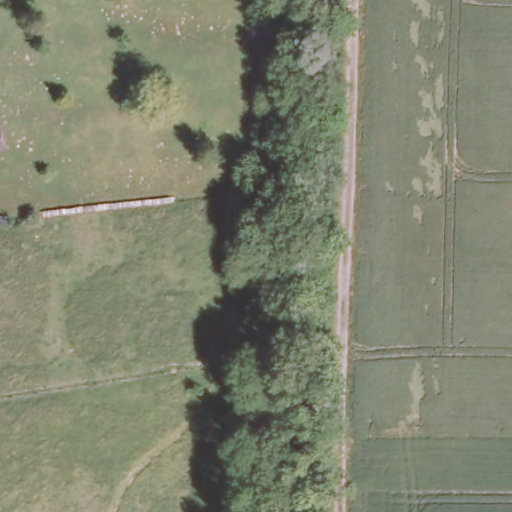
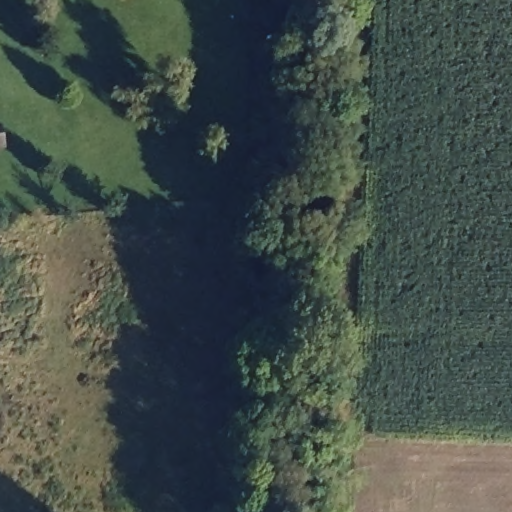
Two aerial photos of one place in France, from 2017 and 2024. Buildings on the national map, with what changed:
unchanged [(0,151),(0,138),(2,150),(0,151)]

